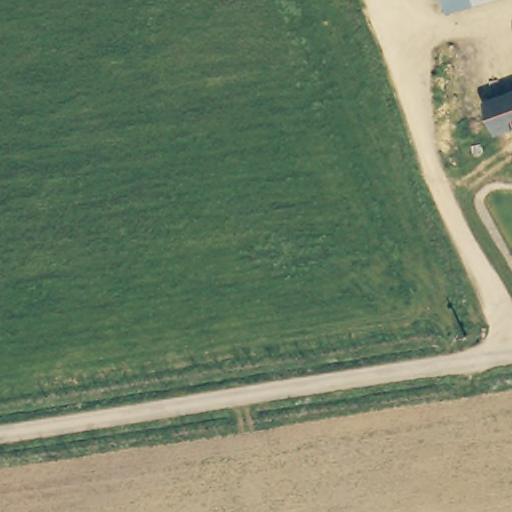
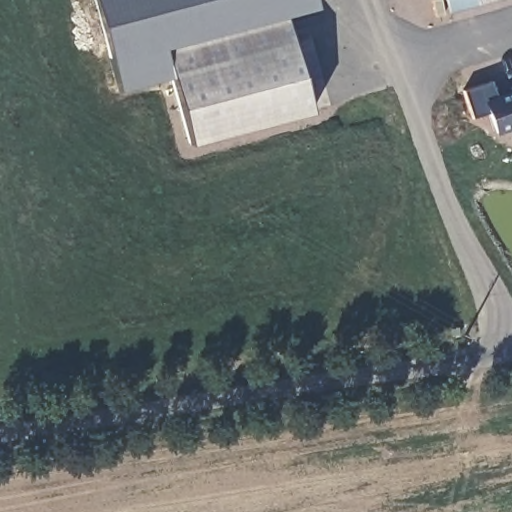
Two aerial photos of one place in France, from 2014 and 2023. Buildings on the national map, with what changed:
new [(285,18),(310,113),(192,146),(174,79),(118,94),(95,0),(314,0),(317,9),(285,18)]
unchanged [(483,101),(512,94),(512,124),(490,130),(483,101)]

